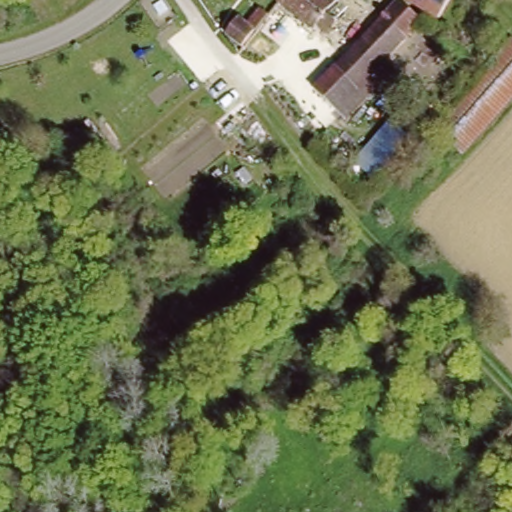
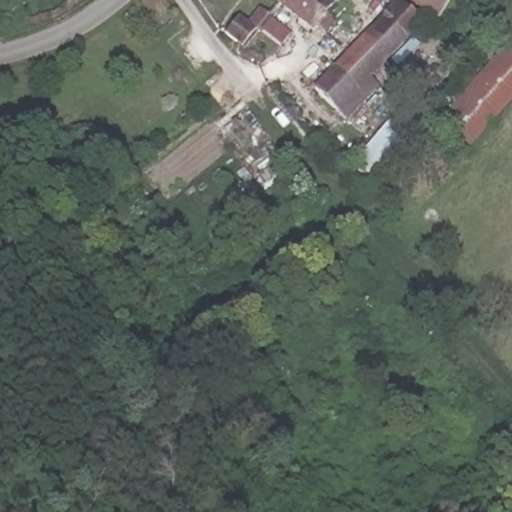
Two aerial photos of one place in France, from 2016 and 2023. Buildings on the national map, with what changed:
unchanged [(271,7),(264,0),(277,0),(271,7)]
unchanged [(277,0),(334,0),(318,18),(329,28),(318,39),(307,29),(303,33),(271,7),(277,0)]
unchanged [(421,19),(369,72),(376,81),(341,115),(312,85),(390,0),(397,0),(421,19)]
unchanged [(436,15),(411,0),(447,0),(436,15)]
unchanged [(248,40),(261,25),(266,29),(241,61),(226,48),(239,33),(248,40)]
unchanged [(512,100),(466,156),(434,130),(511,37),(512,38),(512,100)]

